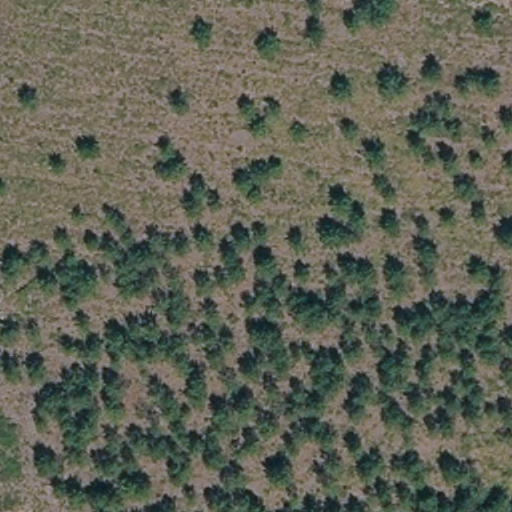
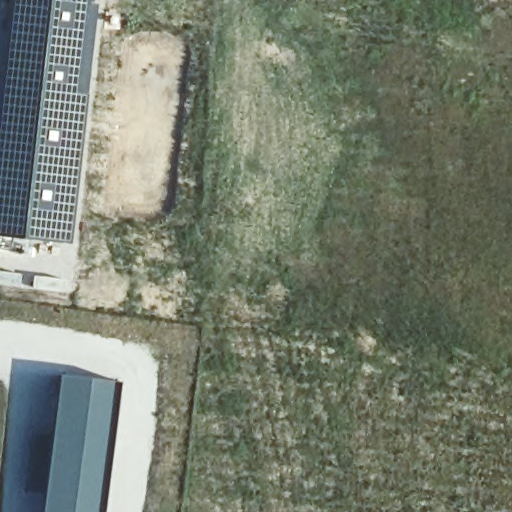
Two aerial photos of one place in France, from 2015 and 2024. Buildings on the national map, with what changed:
new [(95,0),(99,1),(92,76),(81,160),(72,246),(0,236),(0,86),(11,0),(95,0)]
new [(58,374),(114,382),(97,512),(42,512),(58,374)]

